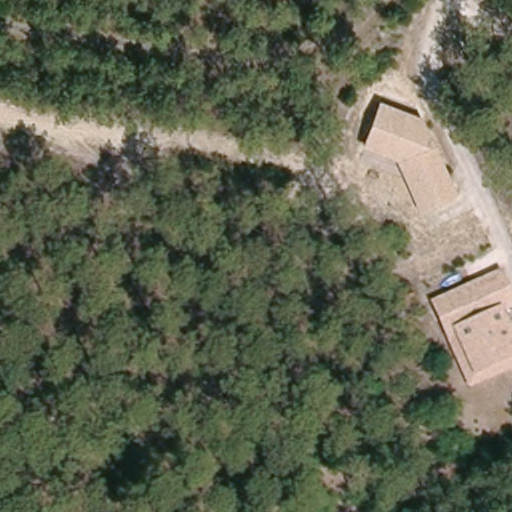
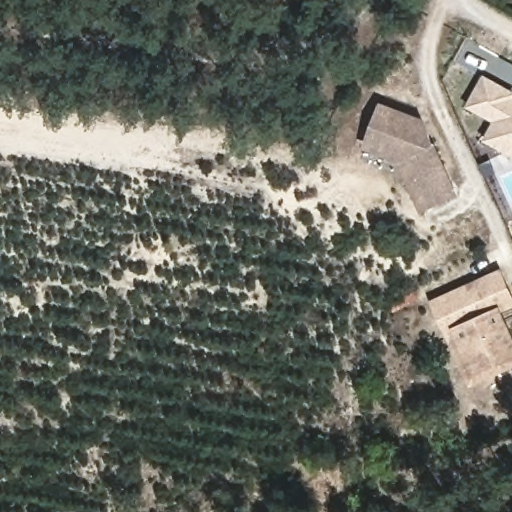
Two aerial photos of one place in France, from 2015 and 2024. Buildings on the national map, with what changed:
new [(493,122),(465,107),(483,74),(512,90),(512,157),(482,140),(493,122)]
unchanged [(421,213),(395,159),(362,147),(378,102),(419,117),(456,196),(421,213)]
unchanged [(512,295),(512,307),(501,312),(512,335),(512,368),(468,387),(428,300),(501,270),(510,288),(512,295)]

